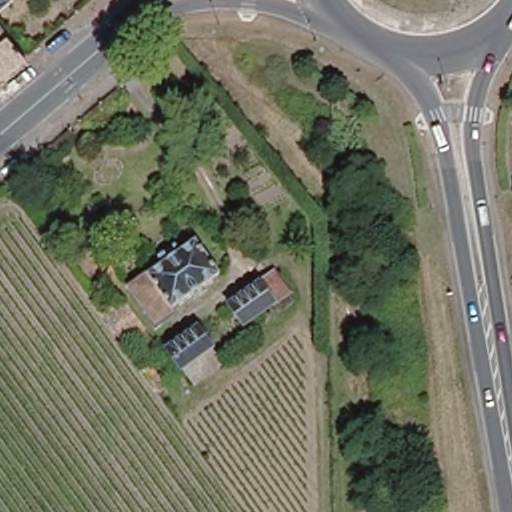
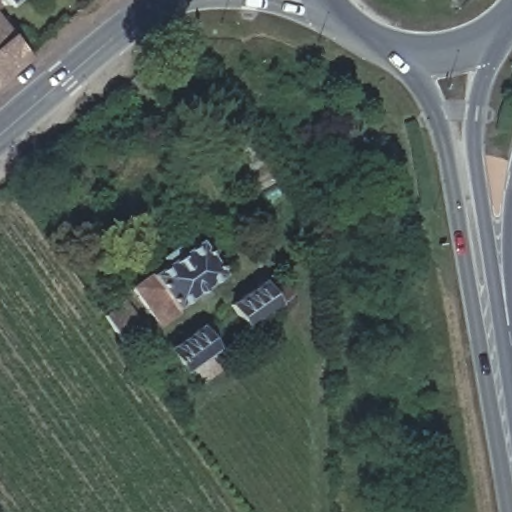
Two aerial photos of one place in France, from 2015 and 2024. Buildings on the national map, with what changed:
unchanged [(0,2),(0,0),(9,0),(3,5),(0,2)]
unchanged [(0,22),(11,35),(0,44),(0,22)]
unchanged [(28,55),(0,79),(0,44),(11,35),(28,55)]
unchanged [(216,272),(172,307),(172,310),(154,322),(129,287),(160,264),(156,257),(171,246),(175,252),(192,241),(216,272)]
unchanged [(268,277),(282,297),(238,331),(224,310),(268,277)]
unchanged [(145,332),(125,346),(105,319),(125,303),(145,332)]
unchanged [(195,330),(221,366),(191,386),(166,351),(195,330)]

